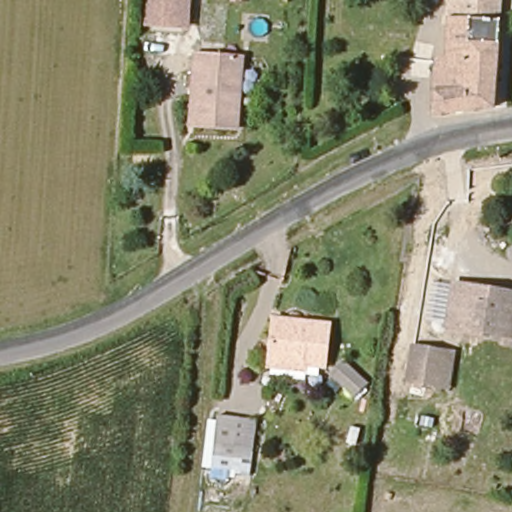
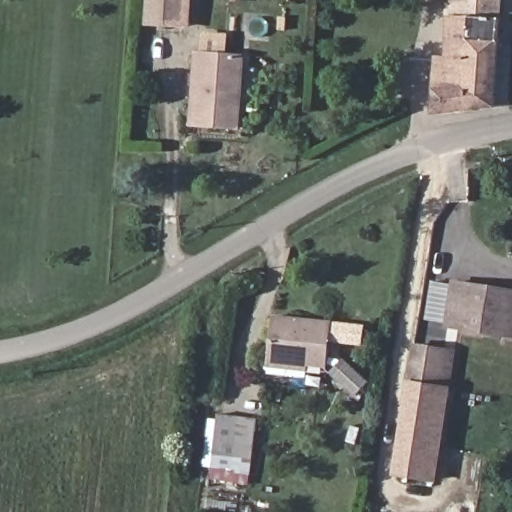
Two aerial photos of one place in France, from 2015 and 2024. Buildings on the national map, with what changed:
unchanged [(445,16),(442,17),(442,2),(447,2),(448,0),(498,0),(497,21),(502,21),(497,106),(439,115),(438,59),(444,59),(445,16)]
unchanged [(185,12),(182,43),(145,40),(147,9),(185,12)]
unchanged [(248,59),(242,130),(198,129),(202,56),(248,59)]
unchanged [(459,286),(496,291),(512,293),(512,338),(451,329),(459,286)]
unchanged [(332,322),(328,365),(271,358),(277,315),(332,322)]
new [(436,482),(391,476),(407,381),(413,343),(457,350),(450,387),(436,482)]
demolished [(447,394),(411,390),(418,347),(456,352),(447,394)]
unchanged [(346,356),(370,377),(355,390),(333,370),(346,356)]
unchanged [(245,425),(241,453),(221,451),(225,422),(245,425)]

